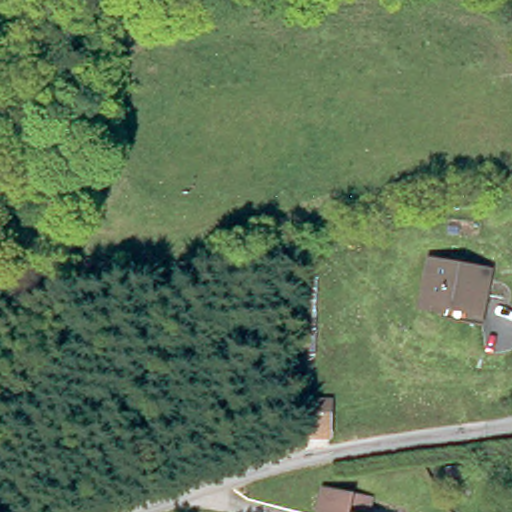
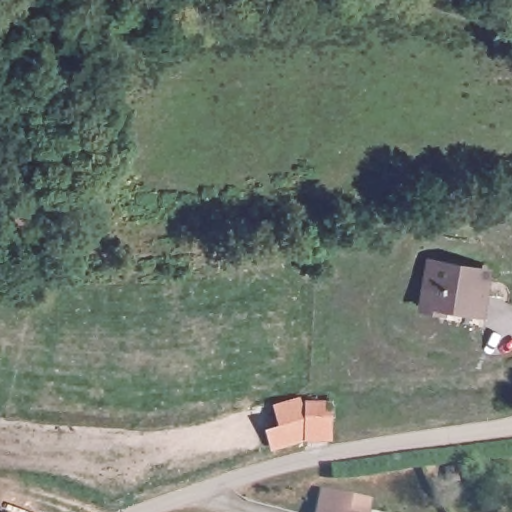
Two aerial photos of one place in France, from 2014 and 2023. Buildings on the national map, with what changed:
unchanged [(488,268),(479,320),(435,312),(436,308),(417,306),(427,260),(488,268)]
new [(304,438),(270,448),(264,426),(278,422),(272,402),(302,395),(303,401),(306,400),(334,400),(334,439),(304,438)]
demolished [(332,403),(332,440),(311,443),(310,403),(332,403)]
unchanged [(315,488),(371,497),(369,512),(312,512),(315,488)]

